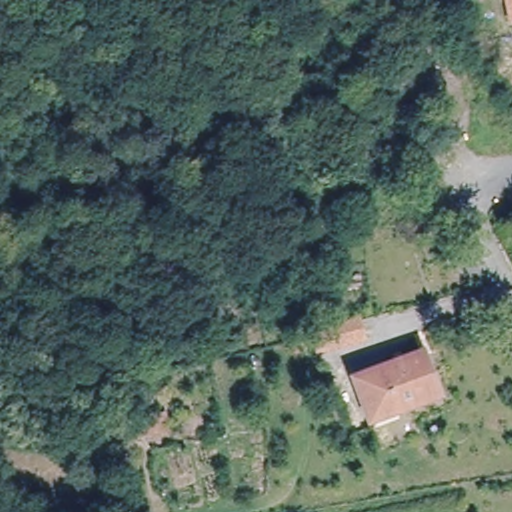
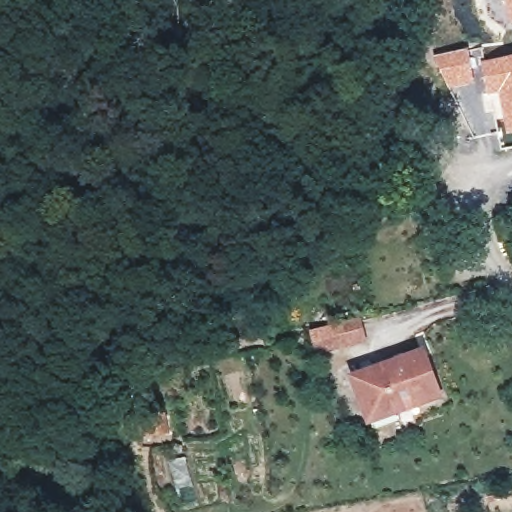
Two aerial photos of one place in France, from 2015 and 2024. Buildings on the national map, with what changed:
unchanged [(512,14),(510,0),(512,0),(512,14)]
new [(469,50),(474,84),(449,91),(433,58),(469,50)]
new [(512,133),(506,134),(497,93),(486,95),(481,63),(512,57),(512,133)]
unchanged [(384,368),(421,354),(436,394),(370,419),(354,379),(384,368)]

